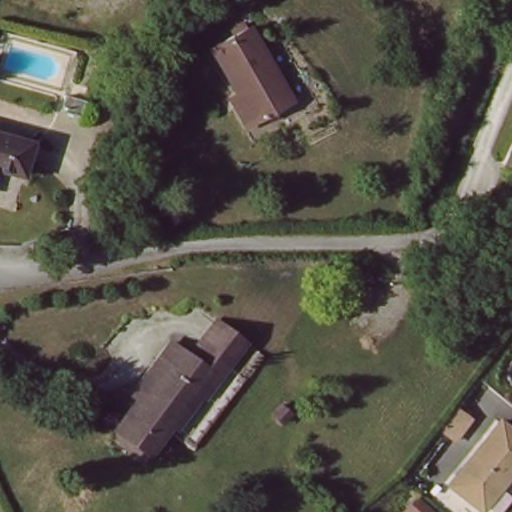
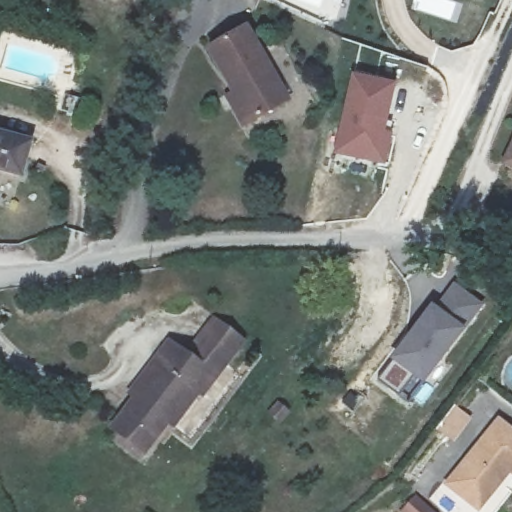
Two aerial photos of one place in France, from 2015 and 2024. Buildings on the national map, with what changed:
unchanged [(242,124),(229,100),(237,94),(208,41),(241,22),(285,100),(242,124)]
new [(404,87),(390,126),(399,129),(387,164),(338,149),(360,72),(404,87)]
unchanged [(33,176),(2,167),(0,171),(0,130),(44,144),(33,176)]
unchanged [(512,153),(512,164),(507,161),(512,153)]
new [(492,304),(433,381),(423,371),(405,392),(384,376),(458,280),(492,304)]
unchanged [(217,337),(224,329),(250,347),(235,367),(236,368),(234,370),(206,351),(217,339),(218,338),(217,337)]
unchanged [(122,434),(151,395),(144,388),(176,347),(214,377),(154,459),(122,434)]
unchanged [(512,430),(512,476),(511,476),(484,508),(451,481),(500,421),(512,430)]

